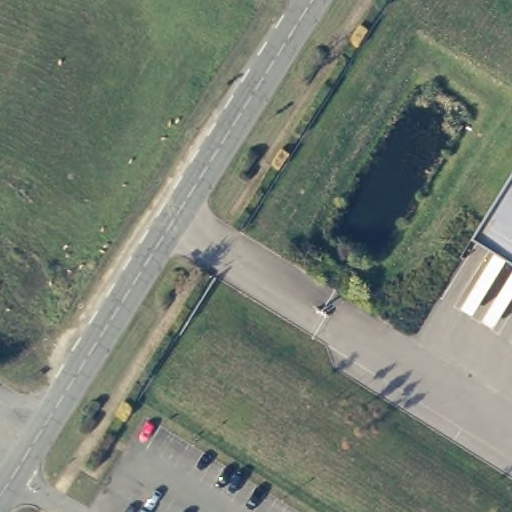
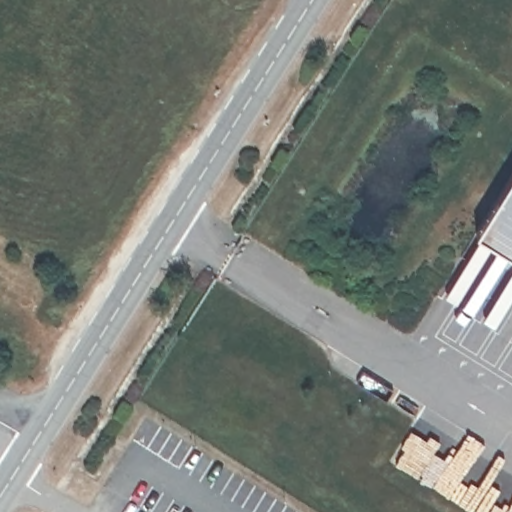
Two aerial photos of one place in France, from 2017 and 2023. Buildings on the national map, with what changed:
unchanged [(512,174),(512,255),(476,233),(512,174)]

